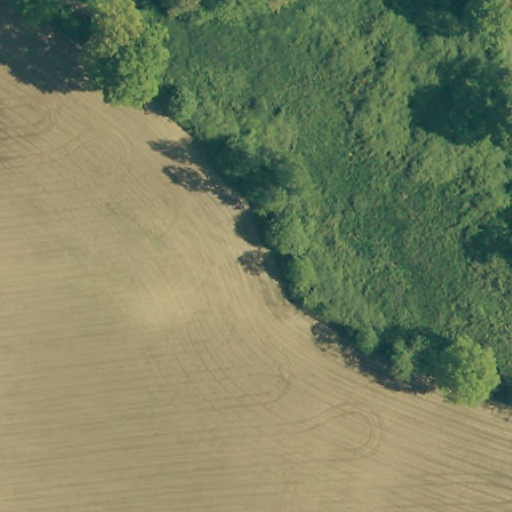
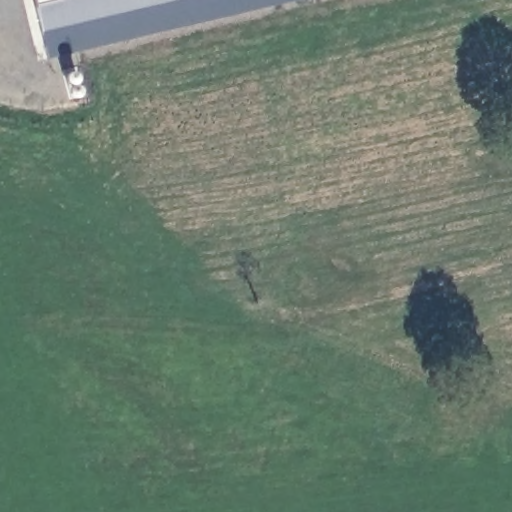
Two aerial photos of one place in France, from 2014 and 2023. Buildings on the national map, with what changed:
new [(58,63),(42,0),(322,0),(58,63)]

